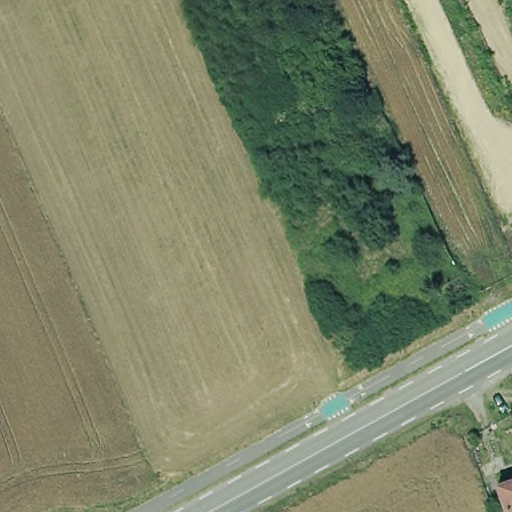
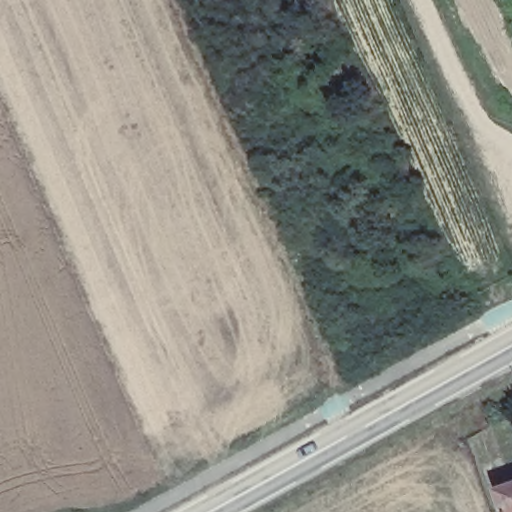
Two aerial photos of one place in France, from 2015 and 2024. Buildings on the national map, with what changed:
unchanged [(512,512),(508,512),(501,491),(512,487),(512,512)]

